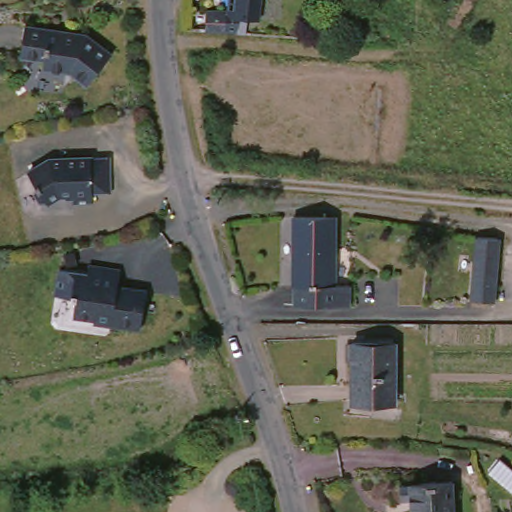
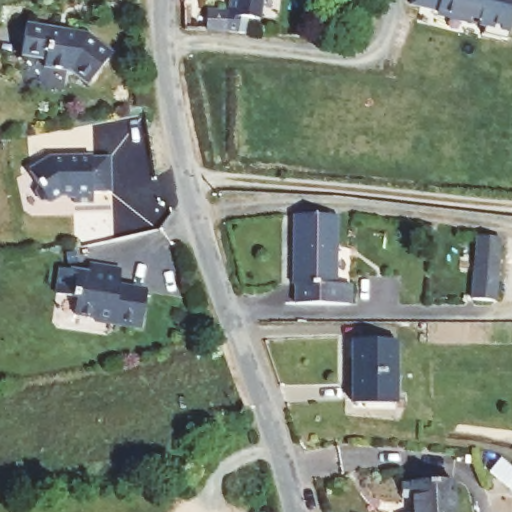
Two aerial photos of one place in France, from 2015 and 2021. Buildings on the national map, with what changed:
new [(483,36),(484,29),(478,29),(480,22),(469,22),(468,26),(435,19),(436,13),(410,7),(412,0),(512,0),(512,18),(506,40),(483,36)]
unchanged [(223,15),(226,16),(223,36),(218,36),(203,35),(204,14),(223,15)]
unchanged [(51,69),(53,61),(28,57),(32,27),(93,35),(119,54),(95,85),(78,72),(51,69)]
unchanged [(46,167),(106,164),(108,200),(90,201),(90,211),(71,212),(71,201),(59,202),(47,210),(45,207),(39,208),(34,200),(37,195),(27,179),(46,167)]
demolished [(230,212),(229,205),(238,204),(238,212),(230,212)]
unchanged [(335,292),(349,292),(349,311),(294,311),(294,292),(290,292),(291,222),(335,224),(335,292)]
unchanged [(493,303),(471,302),(475,240),(496,242),(493,303)]
unchanged [(124,268),(120,291),(131,292),(131,287),(149,291),(144,327),(98,320),(98,317),(78,313),(80,296),(60,293),(64,267),(92,272),(93,263),(124,268)]
unchanged [(351,407),(352,346),(395,346),(395,407),(351,407)]
unchanged [(453,485),(455,512),(400,512),(398,487),(453,485)]

